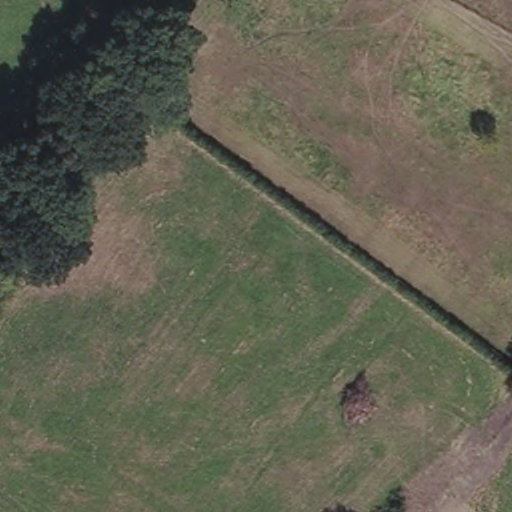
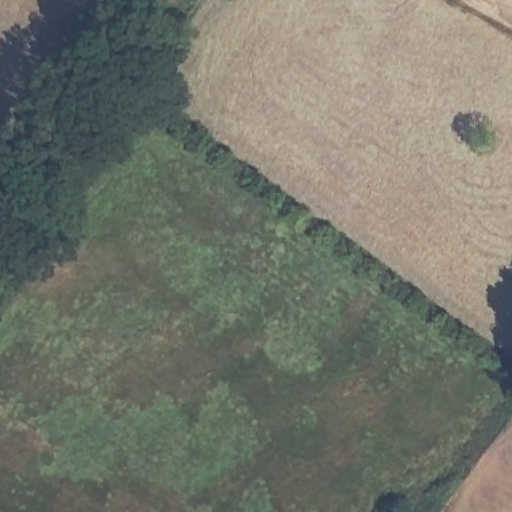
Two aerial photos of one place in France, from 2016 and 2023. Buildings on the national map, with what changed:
[]

